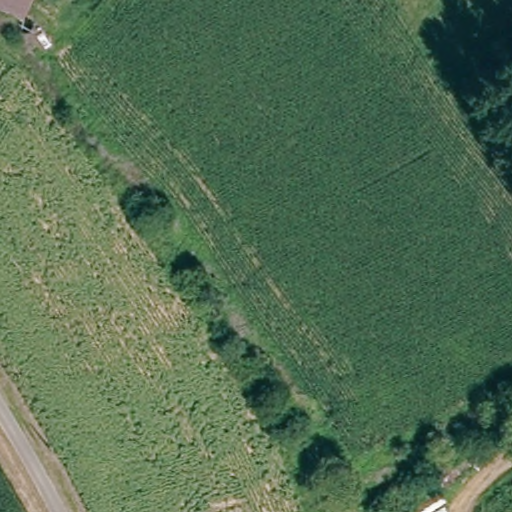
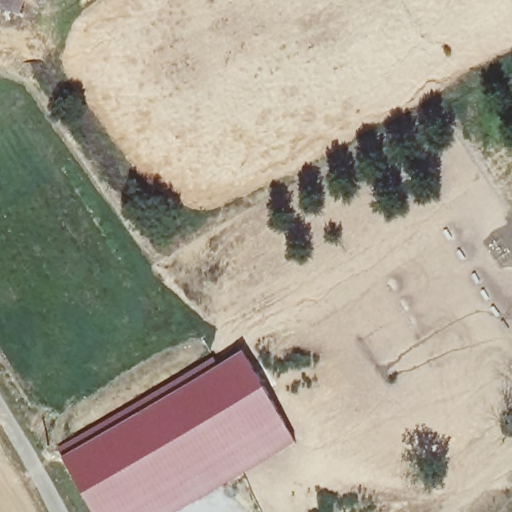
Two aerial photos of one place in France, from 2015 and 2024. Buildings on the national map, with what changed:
unchanged [(13,11),(0,5),(0,0),(30,0),(23,15),(13,11)]
new [(232,347),(283,436),(147,512),(83,512),(48,450),(232,347)]

